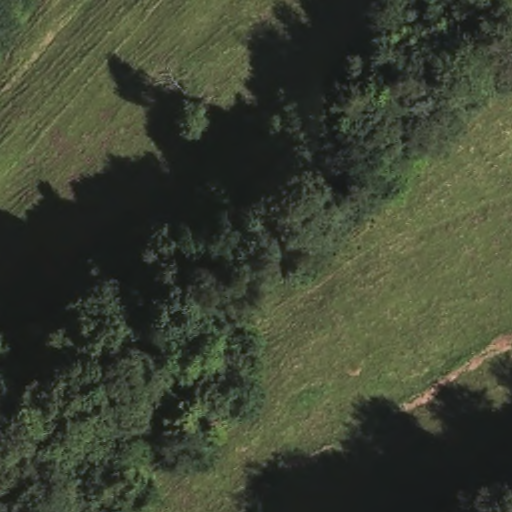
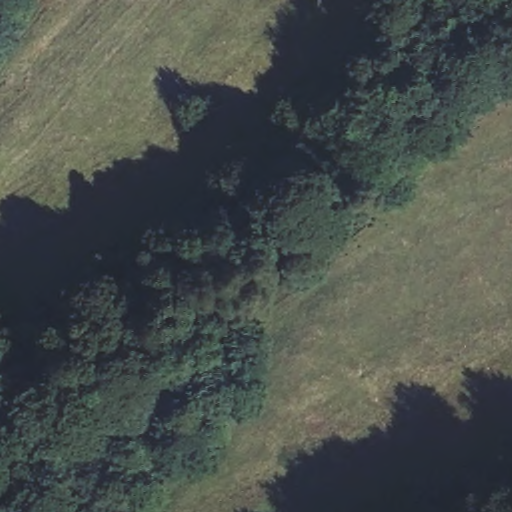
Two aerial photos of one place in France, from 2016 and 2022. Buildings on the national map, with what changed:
[]

